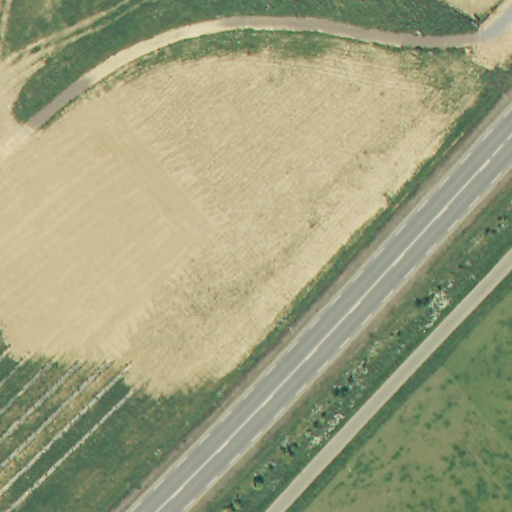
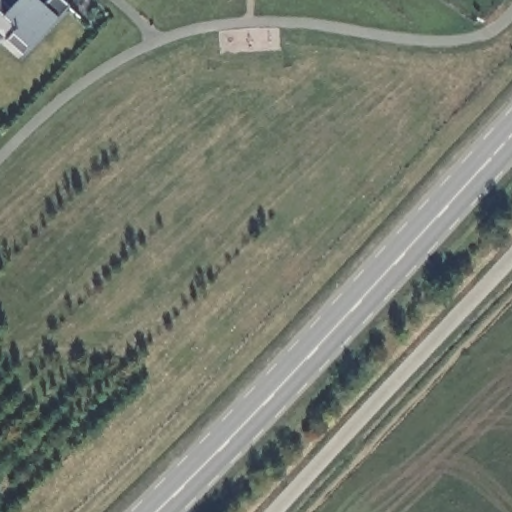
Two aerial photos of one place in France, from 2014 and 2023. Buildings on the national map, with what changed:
new [(55,19),(28,50),(22,55),(6,41),(11,36),(15,32),(0,19),(3,16),(0,14),(0,0),(58,0),(65,7),(55,19)]

